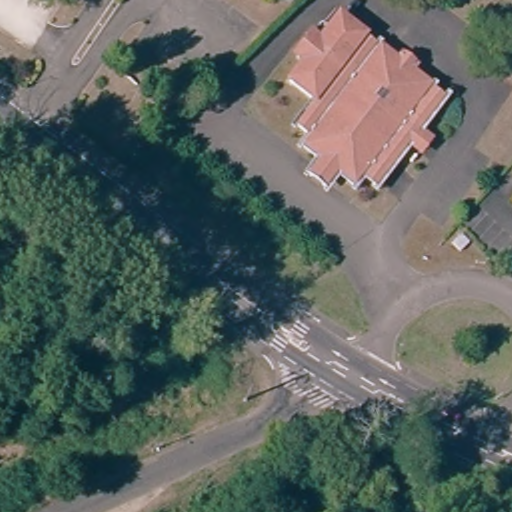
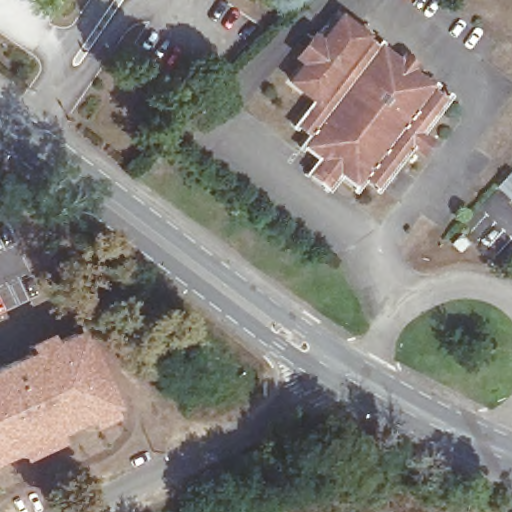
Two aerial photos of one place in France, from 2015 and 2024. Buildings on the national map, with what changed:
unchanged [(422,150),(411,141),(380,182),(366,174),(357,184),(337,170),(334,174),(320,164),(323,159),(302,145),(309,134),(297,122),(314,99),(291,80),(305,61),(296,54),(311,35),(320,41),(339,16),(400,62),(406,55),(412,61),(407,69),(445,97),(420,130),(431,139),(422,150)]
unchanged [(470,260),(462,253),(470,242),(478,249),(470,260)]
new [(23,347),(46,336),(48,341),(77,327),(80,333),(85,330),(95,353),(90,357),(112,408),(107,410),(110,416),(89,427),(84,420),(55,436),(57,442),(18,461),(15,453),(0,461),(0,365),(26,352),(23,347)]

